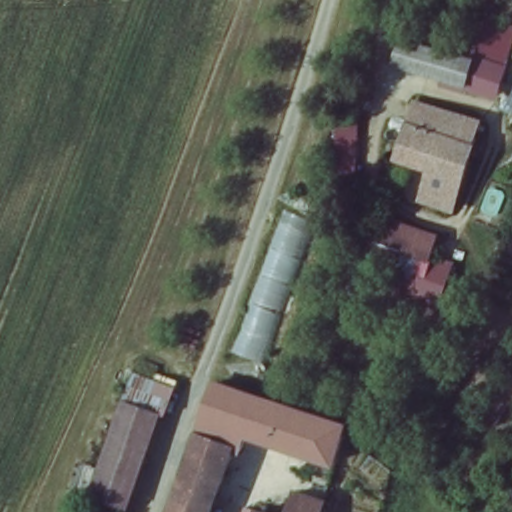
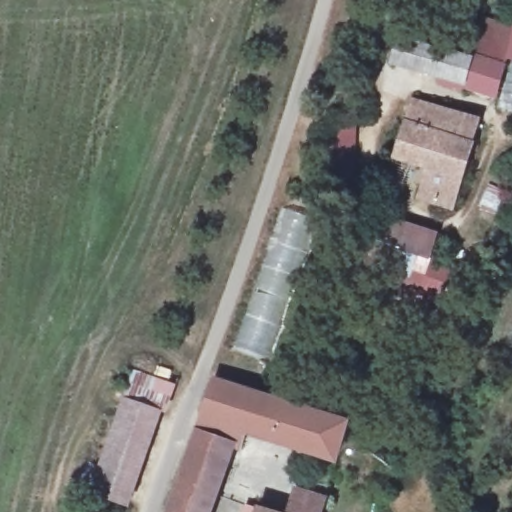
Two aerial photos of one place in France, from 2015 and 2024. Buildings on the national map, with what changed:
unchanged [(469,51),(477,16),(512,29),(512,36),(488,94),(380,61),(392,32),(469,51)]
unchanged [(412,109),(479,128),(454,212),(421,202),(425,191),(429,174),(411,169),(392,163),(412,109)]
unchanged [(321,225),(271,363),(238,352),(285,212),(321,225)]
unchanged [(376,247),(383,218),(441,235),(432,266),(376,247)]
unchanged [(351,428),(348,442),(341,467),(243,432),(214,512),(177,512),(223,383),(351,428)]
unchanged [(128,512),(116,512),(93,503),(129,397),(162,410),(128,512)]
unchanged [(318,503),(316,512),(295,512),(300,497),(318,503)]
unchanged [(275,512),(234,512),(236,502),(275,512)]

